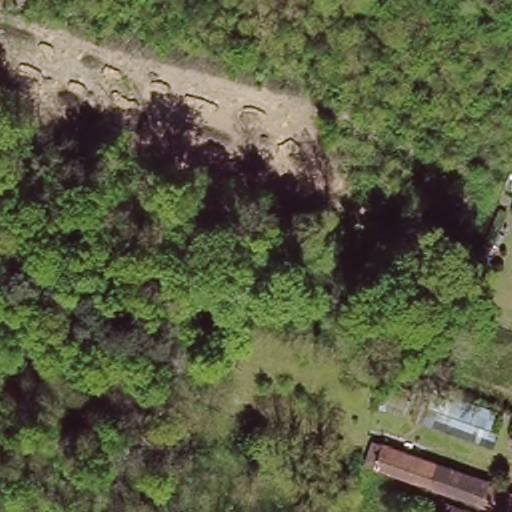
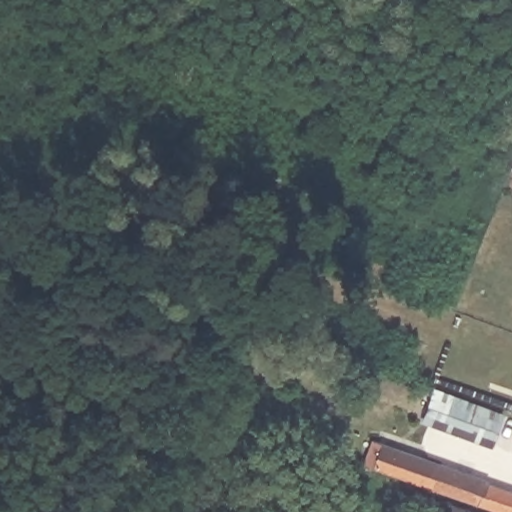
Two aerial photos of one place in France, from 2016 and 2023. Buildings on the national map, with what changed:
unchanged [(492,450),(421,425),(433,389),(505,413),(492,450)]
unchanged [(487,484),(486,487),(512,496),(512,512),(494,512),(364,466),(372,444),(487,484)]
unchanged [(469,512),(429,512),(400,502),(405,489),(469,512)]

